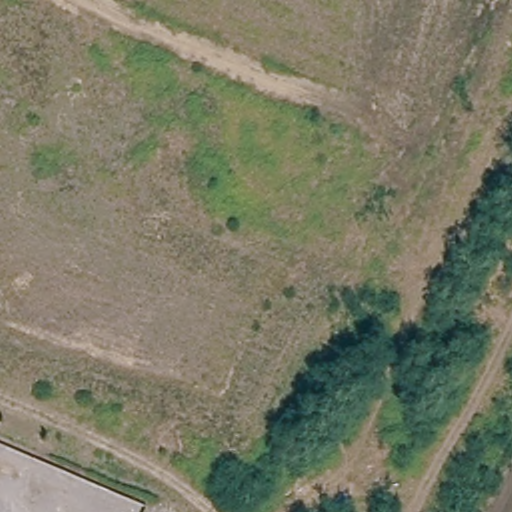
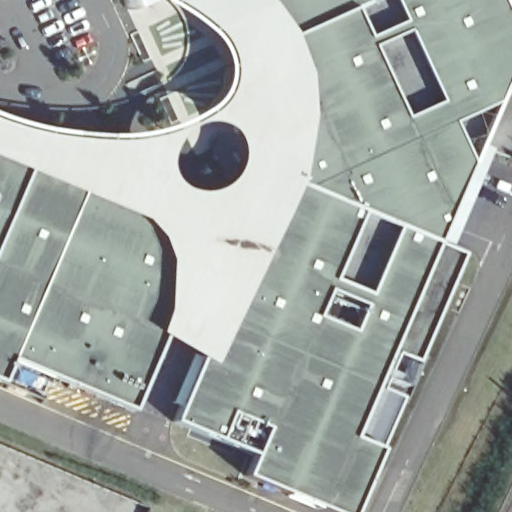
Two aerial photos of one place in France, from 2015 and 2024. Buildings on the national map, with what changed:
new [(270,5),(292,35),(306,77),(310,118),(297,187),(290,201),(280,224),(268,249),(212,365),(203,358),(163,336),(157,333),(165,313),(165,299),(168,266),(163,249),(156,235),(146,222),(28,171),(0,159),(0,121),(33,132),(63,137),(96,141),(126,140),(148,139),(171,132),(193,123),(215,110),(224,96),(230,82),(230,67),(226,53),(216,36),(197,20),(165,0),(263,0),(270,5)]
new [(331,512),(245,475),(253,455),(175,423),(203,358),(212,365),(268,249),(280,224),(290,201),(297,187),(310,118),(306,77),(292,35),(270,5),(263,0),(499,0),(512,29),(512,62),(433,244),(461,256),(378,452),(351,512),(331,512)]
unchanged [(14,357),(4,382),(0,381),(0,159),(28,171),(146,222),(156,235),(163,249),(168,266),(165,299),(165,313),(157,333),(163,336),(134,410),(14,357)]

